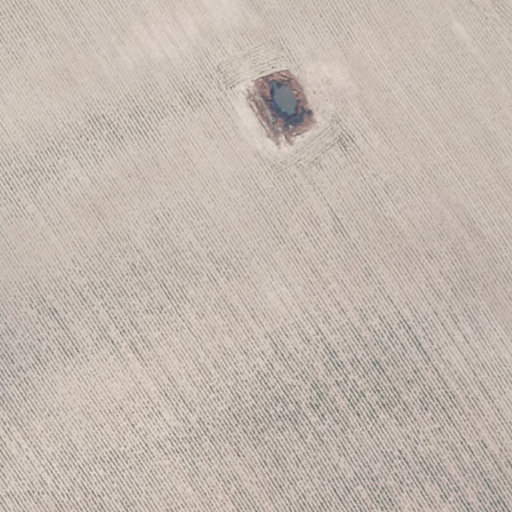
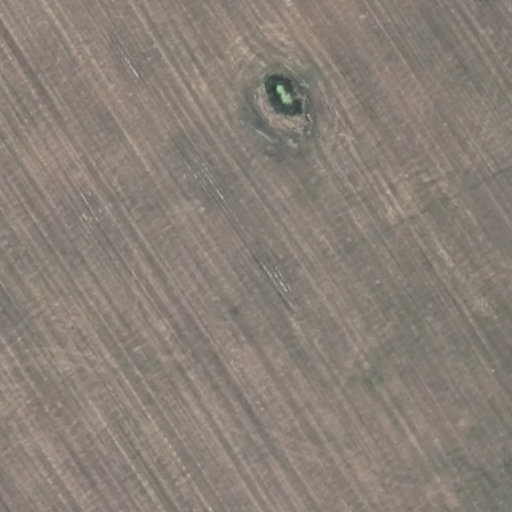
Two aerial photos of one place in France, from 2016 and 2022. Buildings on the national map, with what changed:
[]

